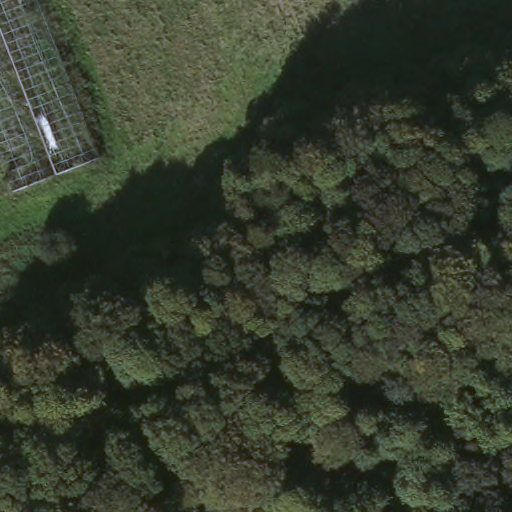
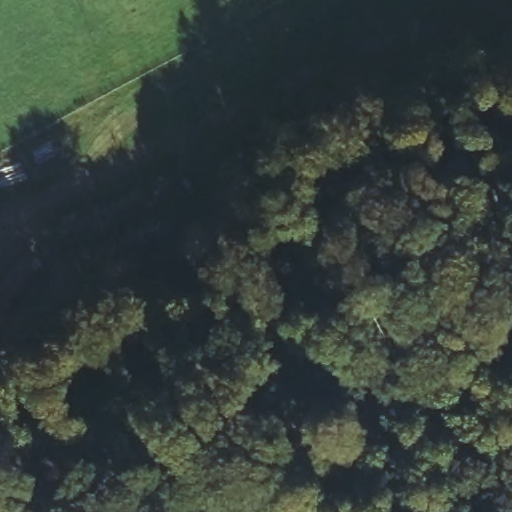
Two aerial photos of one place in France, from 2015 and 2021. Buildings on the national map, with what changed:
demolished [(6,196),(0,182),(0,0),(41,0),(101,157),(6,196)]

